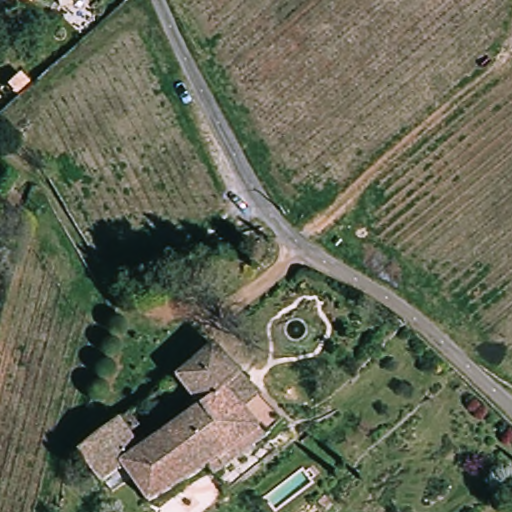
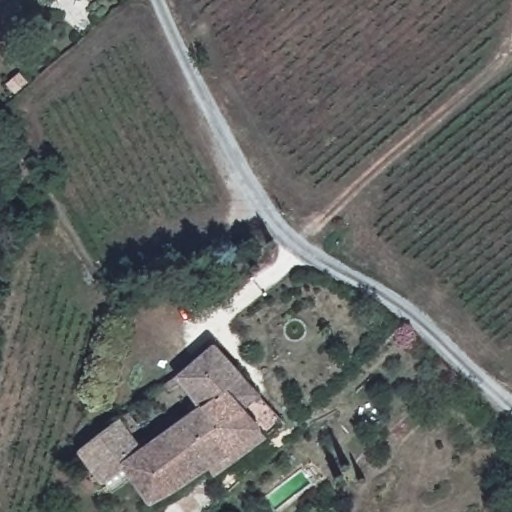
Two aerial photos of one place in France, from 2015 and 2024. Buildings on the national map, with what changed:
unchanged [(153,509),(127,474),(107,491),(82,458),(133,418),(144,433),(134,441),(142,452),(183,421),(170,398),(185,390),(179,379),(184,372),(219,344),(278,423),(209,476),(204,469),(153,509)]

